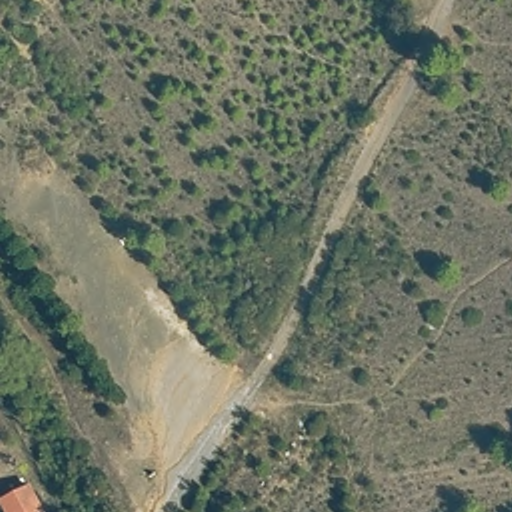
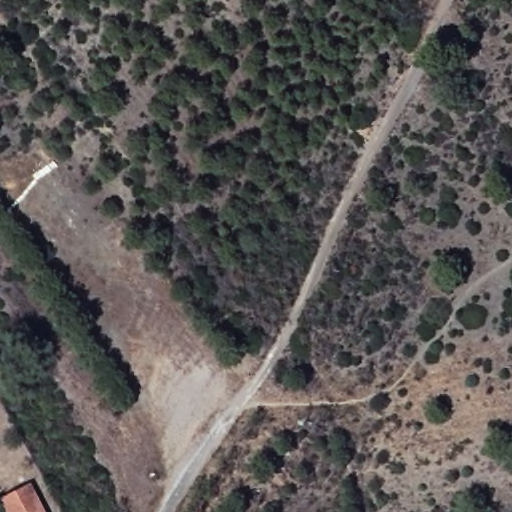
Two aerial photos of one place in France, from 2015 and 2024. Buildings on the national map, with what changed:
unchanged [(0,486),(24,472),(45,512),(8,512),(0,499),(0,486)]

